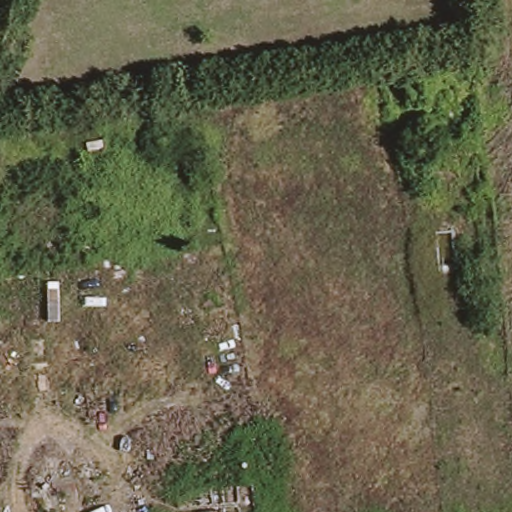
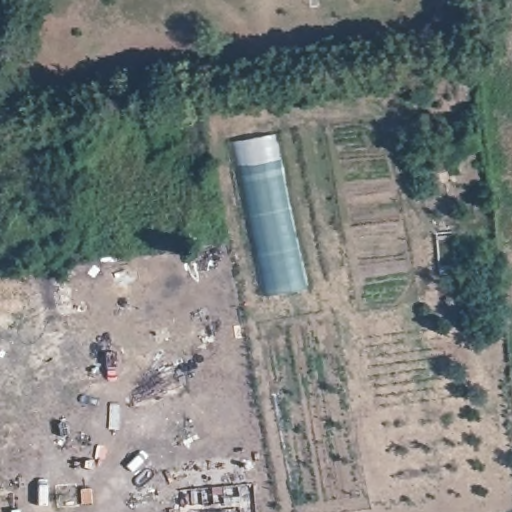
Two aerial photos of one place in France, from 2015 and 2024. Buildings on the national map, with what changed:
new [(277,132),(308,289),(263,296),(243,193),(231,141),(277,132)]

